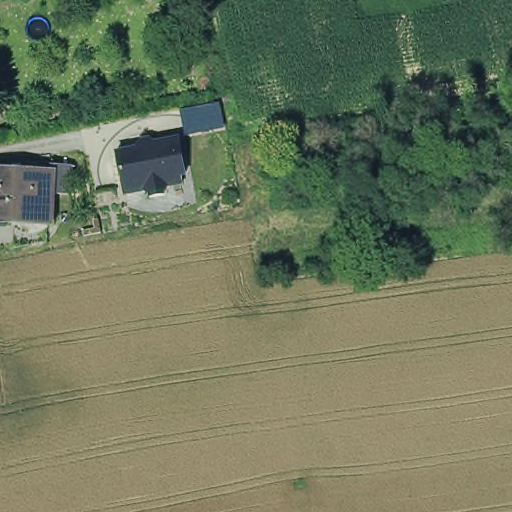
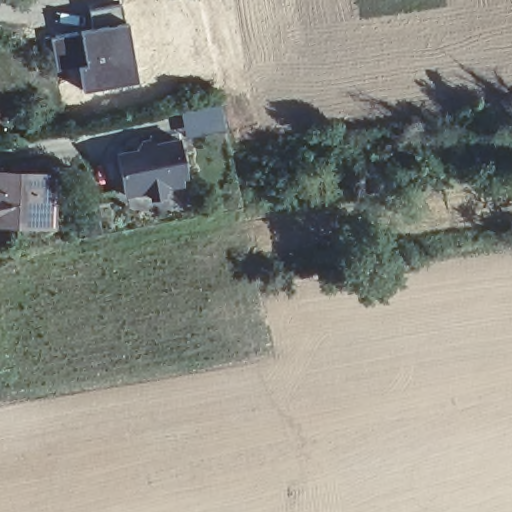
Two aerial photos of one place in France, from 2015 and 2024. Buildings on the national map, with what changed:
new [(83,63),(78,28),(90,26),(87,8),(120,2),(123,20),(127,20),(137,81),(82,90),(77,67),(76,65),(83,63)]
new [(78,28),(83,63),(76,65),(77,67),(55,71),(49,36),(78,28)]
new [(220,105),(224,125),(225,131),(187,139),(182,113),(205,108),(220,105)]
unchanged [(184,138),(192,187),(125,202),(114,153),(184,138)]
unchanged [(0,222),(0,172),(53,174),(52,224),(0,222)]

